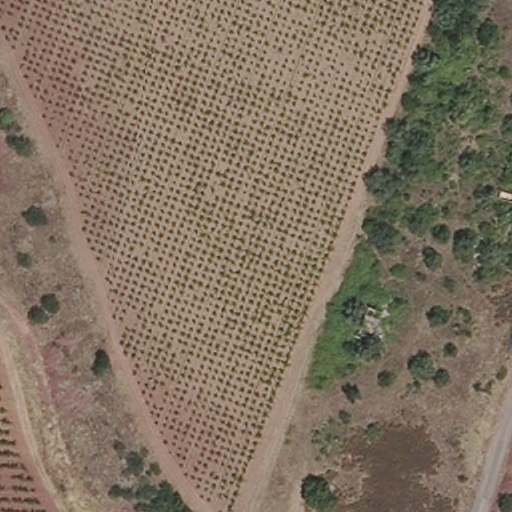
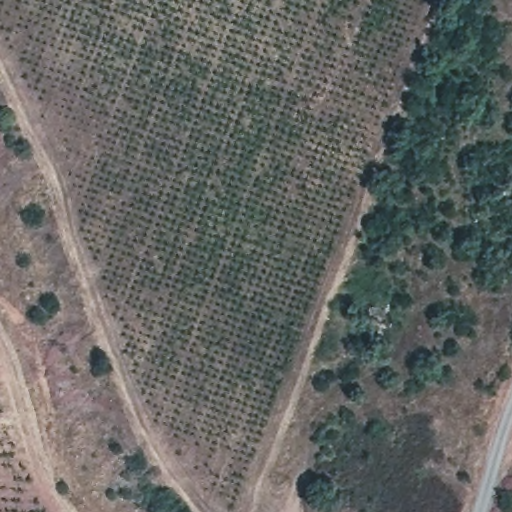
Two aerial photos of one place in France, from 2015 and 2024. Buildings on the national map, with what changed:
unchanged [(357,299),(388,309),(374,340),(345,328),(357,299)]

